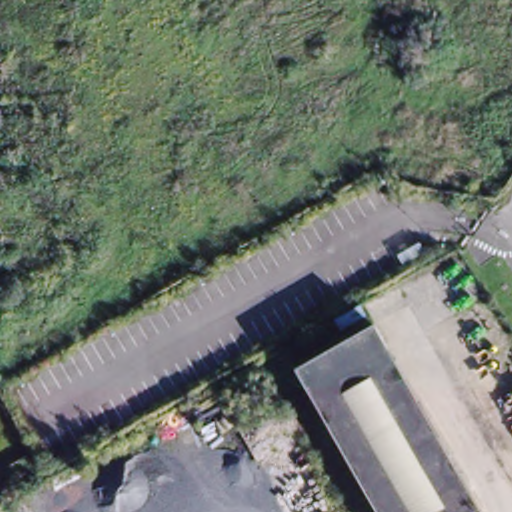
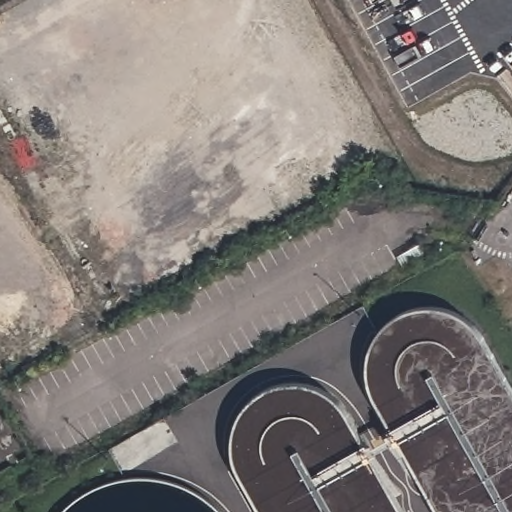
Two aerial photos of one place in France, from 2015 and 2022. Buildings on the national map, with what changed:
demolished [(477,512),(372,512),(291,371),(371,326),(477,512)]

